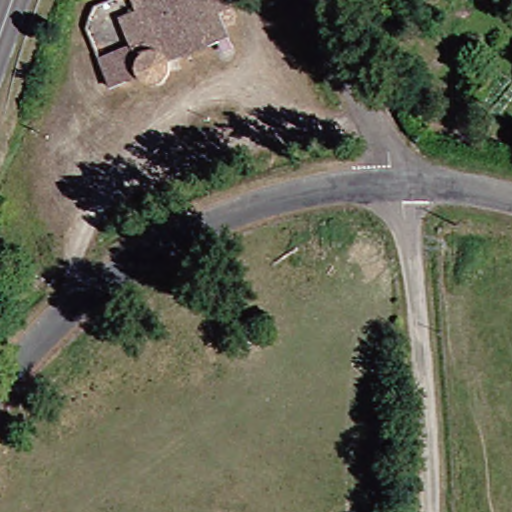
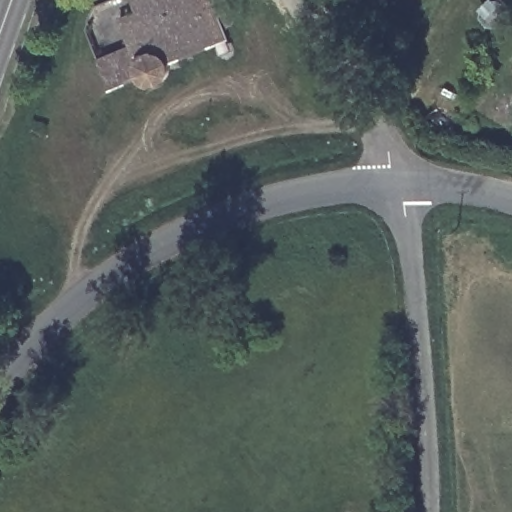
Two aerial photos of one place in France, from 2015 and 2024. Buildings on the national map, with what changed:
unchanged [(129,56),(121,36),(125,25),(137,24),(132,10),(136,2),(141,0),(223,0),(238,40),(221,46),(224,55),(108,94),(103,77),(99,66),(109,63),(129,56)]

